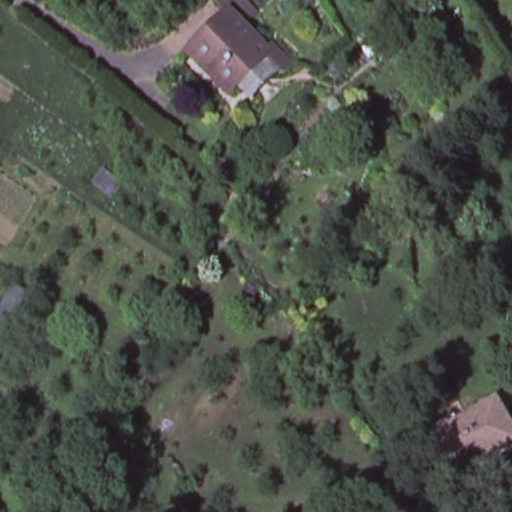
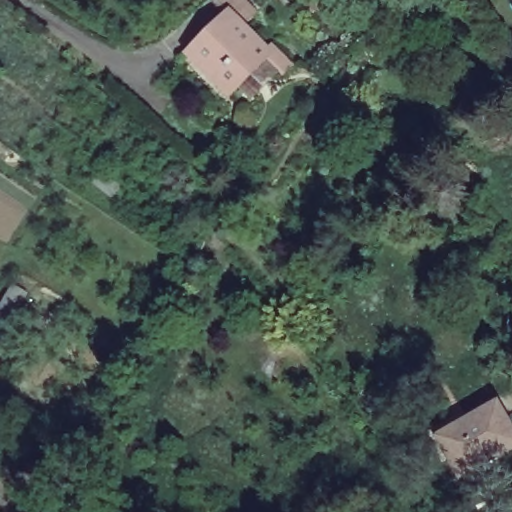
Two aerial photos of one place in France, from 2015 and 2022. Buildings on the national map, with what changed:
unchanged [(278,72),(261,55),(226,90),(186,49),(226,10),(223,6),(221,7),(214,0),(244,0),(246,1),(253,9),(239,23),(261,46),(267,41),(288,61),(278,72)]
unchanged [(123,182),(113,197),(94,185),(104,170),(123,182)]
unchanged [(26,295),(9,322),(0,316),(0,309),(14,286),(26,295)]
unchanged [(512,447),(462,476),(452,458),(442,463),(427,433),(456,417),(461,425),(497,405),(512,428),(512,447)]
unchanged [(0,457),(0,455),(1,455),(0,457)]

